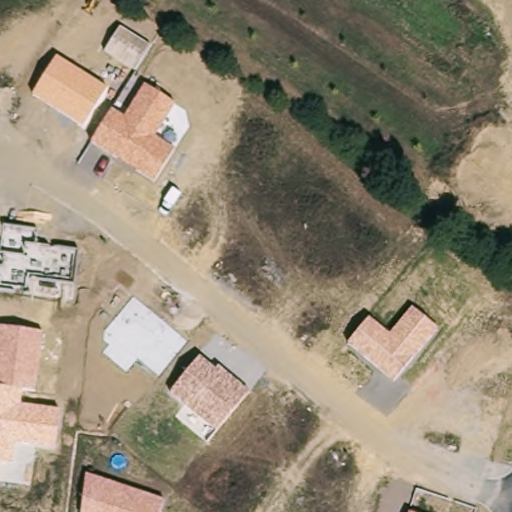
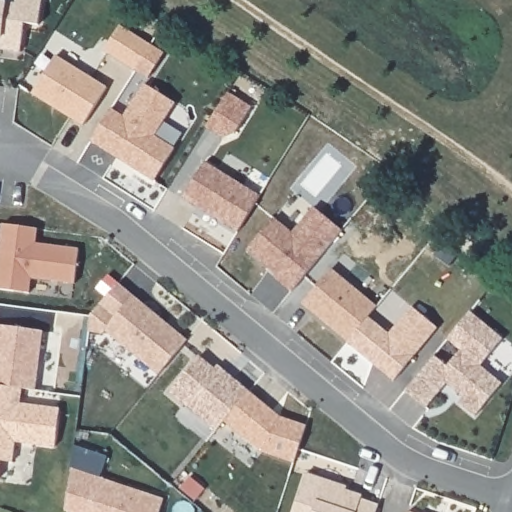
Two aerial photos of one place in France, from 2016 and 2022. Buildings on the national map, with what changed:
new [(16,0),(42,0),(38,25),(24,24),(20,52),(0,50),(0,38),(0,3),(15,5),(16,0)]
new [(148,79),(135,70),(104,50),(119,25),(151,45),(164,53),(148,79)]
unchanged [(33,95),(55,56),(106,89),(83,126),(33,95)]
unchanged [(112,109),(124,116),(144,85),(175,105),(154,136),(174,150),(153,181),(91,141),(112,109)]
new [(205,162),(259,196),(237,232),(183,198),(205,162)]
new [(248,251),(274,219),(293,234),(314,208),(343,231),(292,292),(275,278),(267,271),(269,268),(248,251)]
unchanged [(38,229),(36,245),(78,250),(73,283),(32,280),(29,293),(0,289),(0,243),(2,225),(38,229)]
new [(348,343),(301,305),(332,268),(377,306),(369,317),(348,343)]
new [(100,305),(118,282),(134,295),(188,340),(159,375),(105,330),(103,332),(89,332),(90,316),(100,305)]
unchanged [(348,343),(369,317),(389,334),(412,307),(437,328),(392,381),(348,343)]
new [(434,355),(448,367),(462,350),(448,339),(470,312),(503,339),(481,366),(502,383),(475,416),(459,404),(464,398),(447,383),(426,408),(405,391),(434,355)]
unchanged [(35,392),(23,391),(21,405),(60,410),(56,448),(14,445),(13,463),(0,462),(0,327),(41,333),(35,392)]
unchanged [(169,391),(199,357),(217,371),(219,366),(247,392),(217,430),(169,391)]
new [(280,416),(306,424),(294,462),(258,451),(223,421),(247,392),(280,416)]
unchanged [(85,474),(164,501),(160,512),(82,512),(85,474)]
new [(306,474),(347,487),(346,490),(362,496),(361,500),(379,505),(377,512),(293,512),(306,474)]

